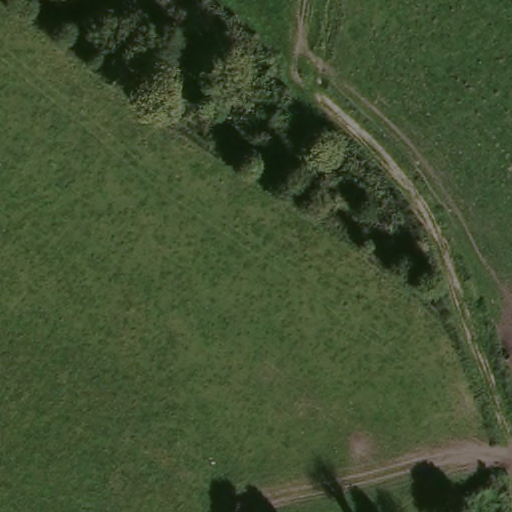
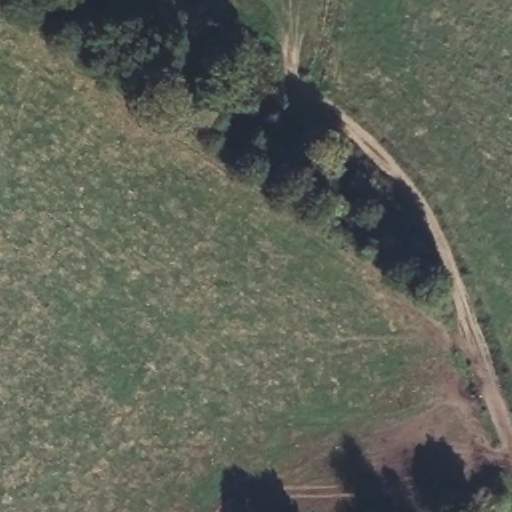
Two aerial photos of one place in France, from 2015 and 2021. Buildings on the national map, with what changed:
[]

